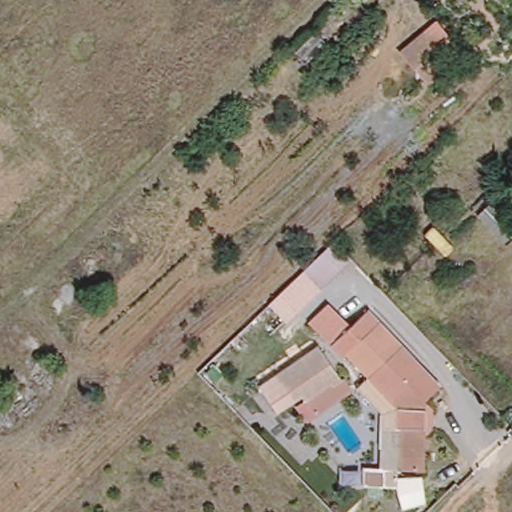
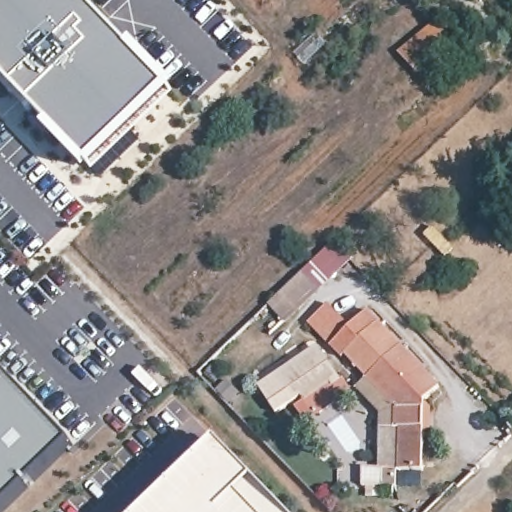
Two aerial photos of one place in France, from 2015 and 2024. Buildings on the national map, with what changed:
new [(91,165),(0,70),(0,0),(83,0),(169,90),(91,165)]
unchanged [(429,25),(455,55),(426,83),(397,51),(429,25)]
unchanged [(350,258),(296,310),(281,292),(335,242),(350,258)]
unchanged [(434,381),(421,394),(421,463),(394,461),(395,421),(389,420),(390,399),(369,377),(364,371),(343,349),(340,352),(304,316),(324,295),(348,318),(362,305),(396,341),(434,381)]
unchanged [(339,383),(349,380),(354,390),(309,423),(298,409),(306,402),(303,398),(278,415),(259,385),(319,349),(339,383)]
new [(0,511),(0,369),(70,444),(0,511)]
unchanged [(390,399),(389,420),(395,421),(394,461),(394,488),(382,487),(382,468),(379,468),(381,413),(359,388),(369,377),(390,399)]
new [(218,440),(287,512),(143,512),(218,440)]

